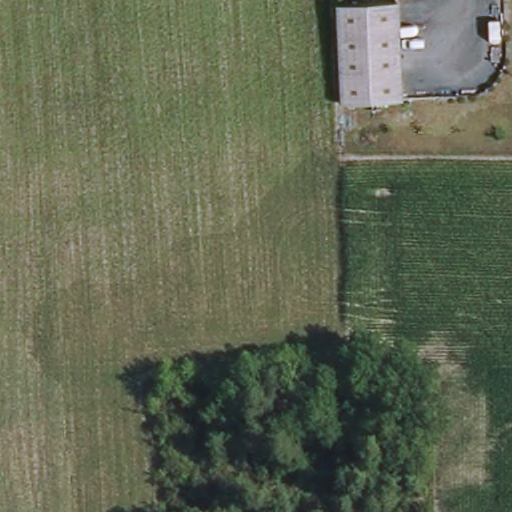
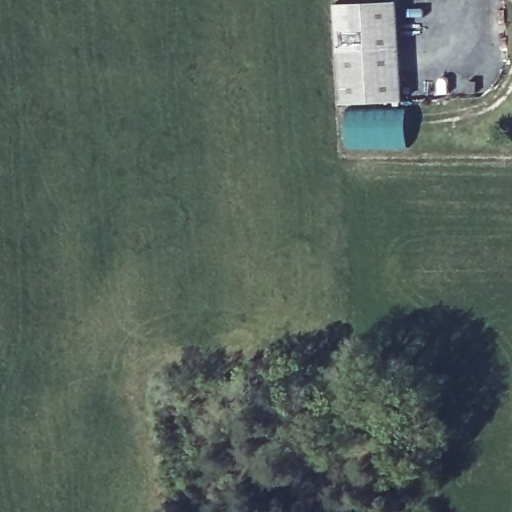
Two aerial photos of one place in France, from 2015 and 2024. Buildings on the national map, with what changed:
unchanged [(407,96),(346,100),(345,0),(405,0),(407,96)]
new [(401,137),(402,144),(359,145),(349,137),(349,112),(402,110),(402,120),(407,120),(408,136),(401,137)]

